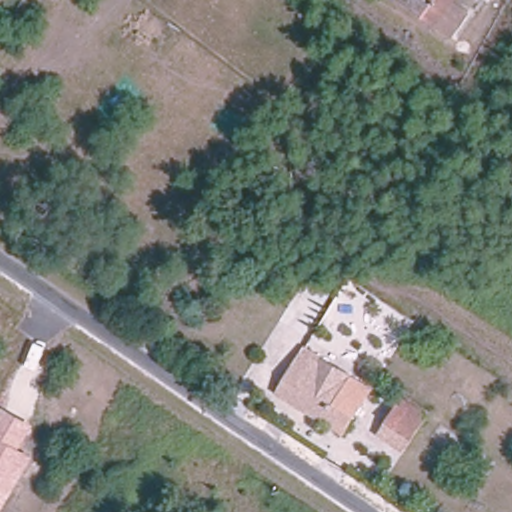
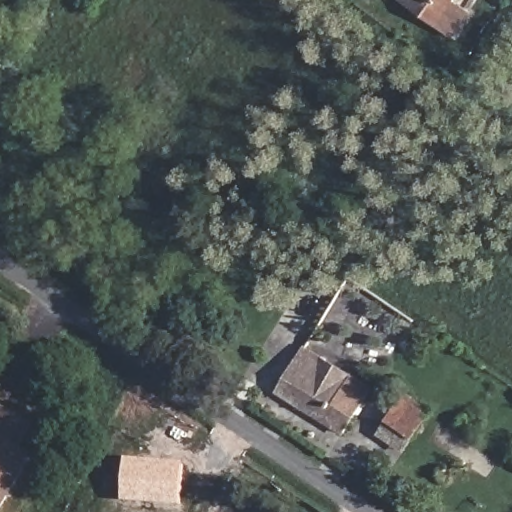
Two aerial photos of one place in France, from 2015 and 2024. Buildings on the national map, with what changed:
unchanged [(440,28),(402,1),(403,0),(461,0),(440,28)]
unchanged [(342,427),(283,390),(306,348),(368,385),(342,427)]
unchanged [(373,442),(381,429),(392,411),(405,390),(434,405),(419,428),(409,445),(400,459),(373,442)]
unchanged [(37,457),(3,512),(0,512),(0,411),(3,405),(35,423),(22,449),(37,457)]
new [(126,458),(185,462),(182,506),(122,502),(126,458)]

